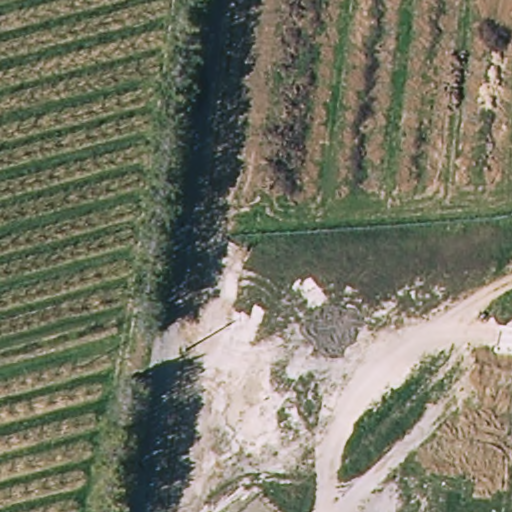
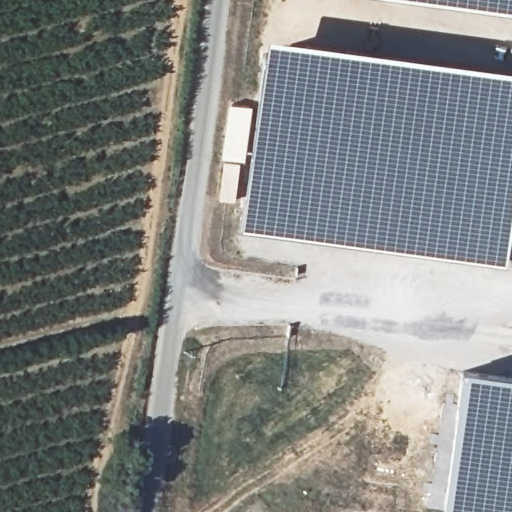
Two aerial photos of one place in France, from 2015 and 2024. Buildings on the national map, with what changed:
new [(512,0),(512,13),(415,0),(512,0)]
new [(266,32),(512,65),(512,208),(505,263),(240,228),(266,32)]
new [(252,106),(245,160),(221,157),(228,103),(252,106)]
new [(240,162),(234,201),(218,198),(223,160),(240,162)]
new [(461,365),(512,372),(512,512),(458,512),(443,510),(461,365)]

